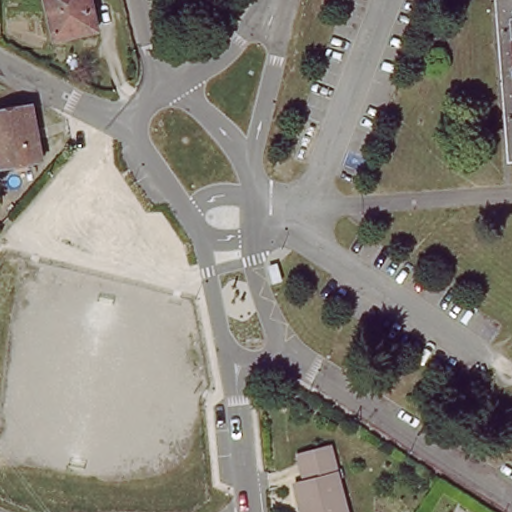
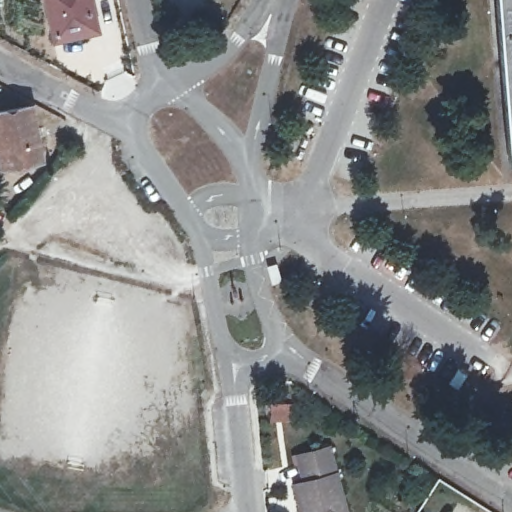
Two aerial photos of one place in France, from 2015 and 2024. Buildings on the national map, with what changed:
unchanged [(48,0),(88,0),(93,30),(56,37),(48,0)]
unchanged [(507,161),(495,0),(512,0),(512,160),(507,161)]
unchanged [(0,107),(29,103),(36,154),(0,159),(0,107)]
unchanged [(349,512),(303,512),(296,481),(288,451),(299,448),(331,441),(349,512)]

